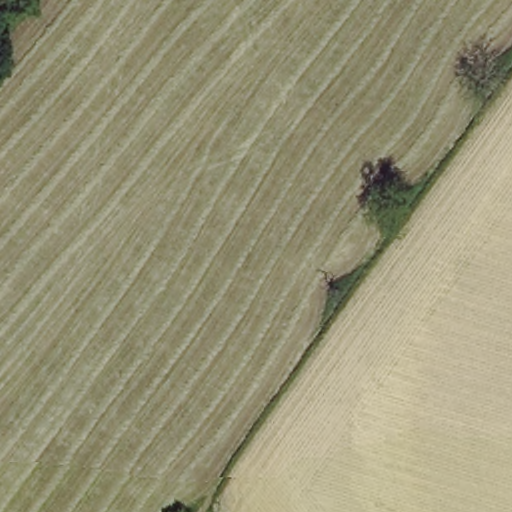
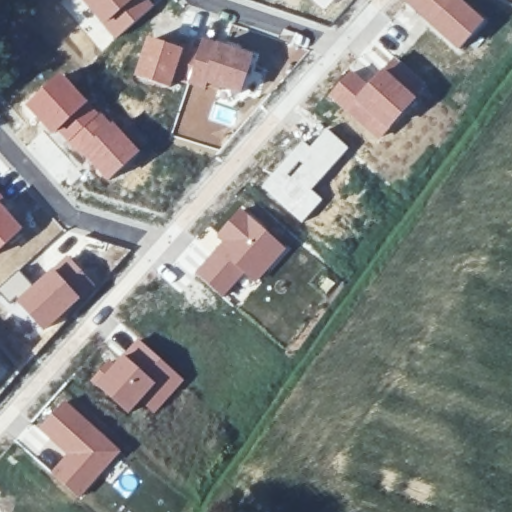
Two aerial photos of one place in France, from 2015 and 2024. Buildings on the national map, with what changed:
new [(101,52),(80,28),(93,18),(79,0),(149,0),(155,6),(101,52)]
new [(462,0),(485,21),(457,51),(402,1),(403,0),(462,0)]
new [(200,37),(254,55),(239,96),(186,83),(200,37)]
new [(146,38),(183,49),(171,90),(133,78),(146,38)]
new [(383,69),(394,56),(427,86),(417,98),(378,141),(325,95),(349,68),(369,85),(383,69)]
new [(61,75),(88,102),(56,133),(53,136),(25,108),(61,75)]
new [(88,102),(141,151),(108,184),(56,133),(88,102)]
new [(301,139),(309,146),(326,128),(349,148),(311,190),(322,199),(301,224),(258,187),(301,139)]
new [(0,202),(0,195),(3,199),(0,202)]
new [(0,249),(0,203),(24,229),(0,249)]
new [(219,241),(213,235),(238,206),(286,249),(254,284),(243,275),(222,298),(193,272),(219,241)]
new [(30,224),(35,230),(51,217),(63,230),(18,270),(32,286),(15,302),(10,305),(0,294),(0,249),(24,229),(30,224)]
new [(54,271),(69,258),(96,288),(81,301),(43,333),(15,302),(32,286),(33,287),(54,271)]
new [(104,362),(108,366),(138,338),(185,380),(153,415),(141,403),(128,416),(87,380),(104,362)]
new [(63,399),(121,451),(78,499),(49,473),(64,455),(35,428),(63,399)]

